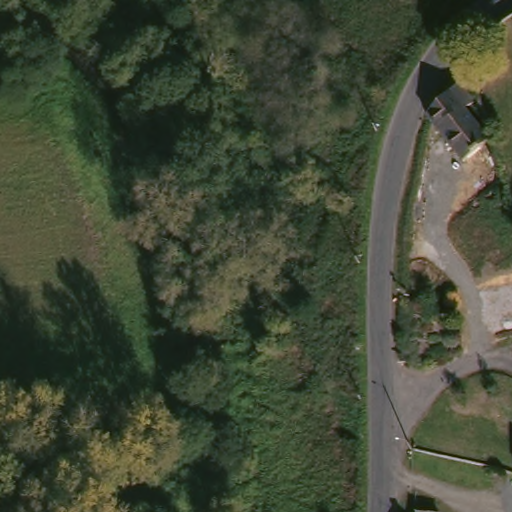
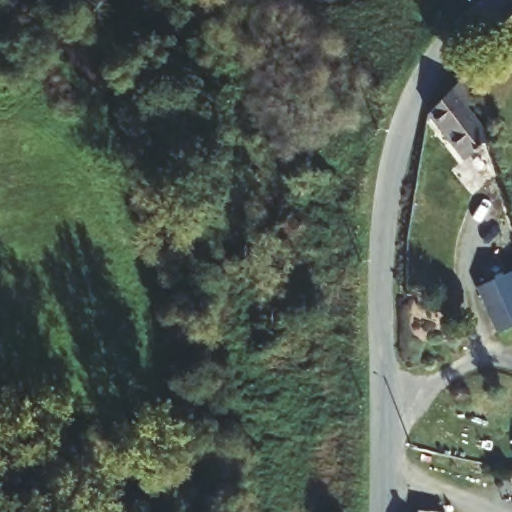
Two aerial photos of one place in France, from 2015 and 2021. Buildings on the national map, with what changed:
unchanged [(457,167),(427,117),(463,88),(487,146),(457,167)]
new [(512,272),(512,328),(496,336),(477,288),(512,272)]

